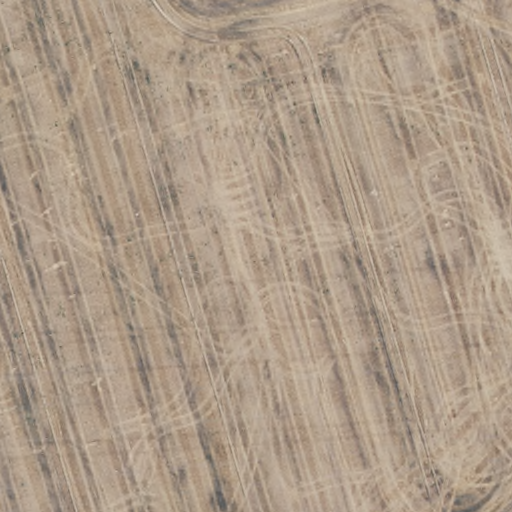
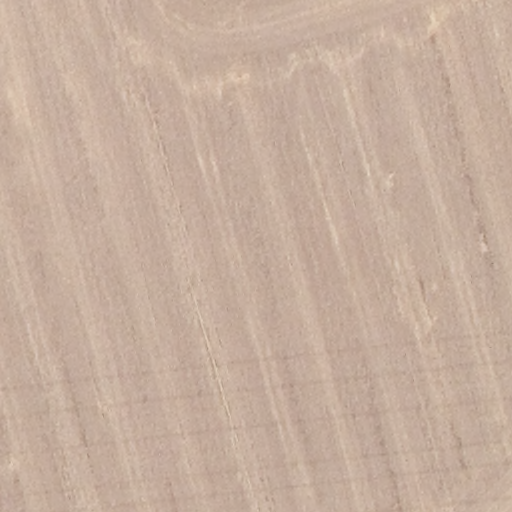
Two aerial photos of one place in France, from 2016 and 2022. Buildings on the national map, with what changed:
[]

